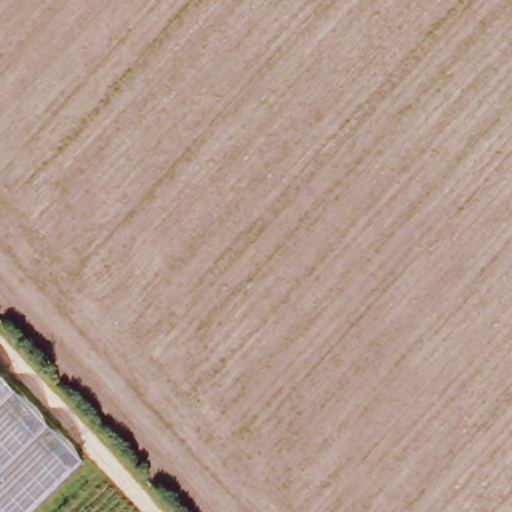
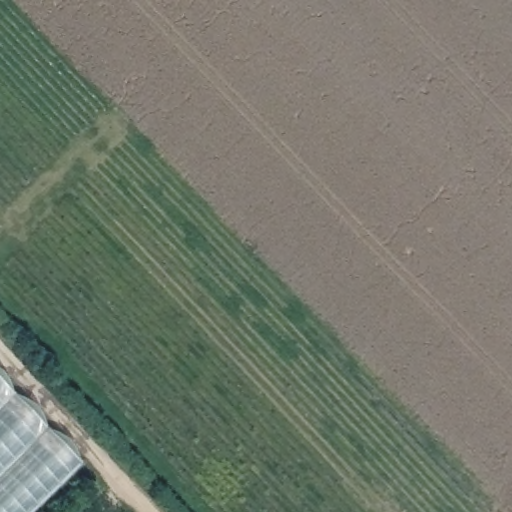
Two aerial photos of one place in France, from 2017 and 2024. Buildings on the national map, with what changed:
unchanged [(80,463),(30,512),(0,512),(0,382),(80,463)]

